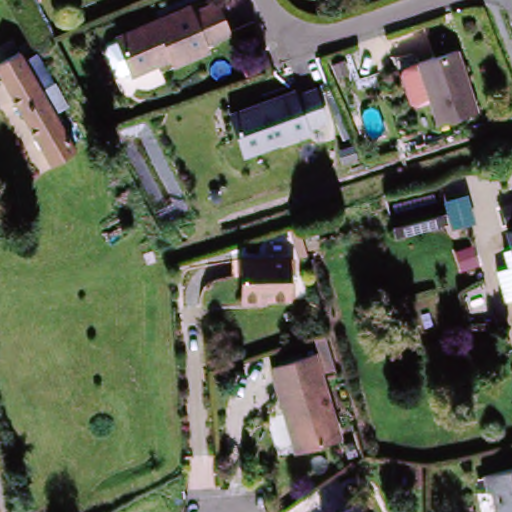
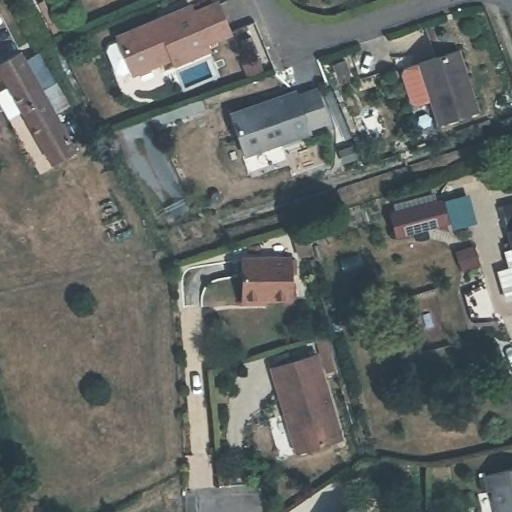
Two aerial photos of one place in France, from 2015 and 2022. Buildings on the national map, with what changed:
unchanged [(117,68),(108,46),(110,41),(121,36),(120,32),(194,1),(197,7),(220,0),(222,0),(234,31),(210,40),(212,47),(174,61),(172,55),(133,69),(133,66),(123,71),(117,68)]
unchanged [(442,117),(435,94),(420,99),(414,96),(405,67),(408,61),(416,58),(422,56),(459,44),(479,105),(442,117)]
unchanged [(46,123),(64,156),(45,167),(0,88),(0,60),(3,58),(13,73),(29,65),(57,116),(46,123)]
unchanged [(308,128),(310,137),(242,157),(230,112),(293,93),(294,97),(316,92),(325,124),(308,128)]
unchanged [(398,227),(392,212),(436,200),(441,215),(398,227)]
unchanged [(512,210),(512,220),(510,211),(512,210)]
unchanged [(512,253),(512,259),(510,253),(512,253)]
unchanged [(251,299),(252,257),(296,257),(295,298),(251,299)]
unchanged [(502,271),(512,268),(512,296),(508,296),(502,271)]
unchanged [(293,458),(270,383),(314,369),(336,445),(293,458)]
unchanged [(512,463),(512,512),(485,512),(476,471),(512,463)]
unchanged [(367,512),(345,512),(361,502),(367,512)]

